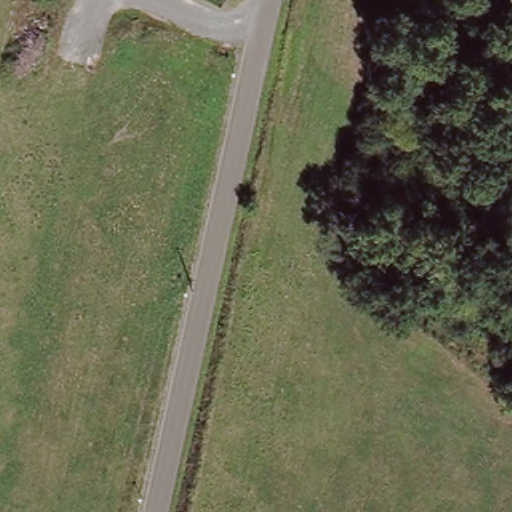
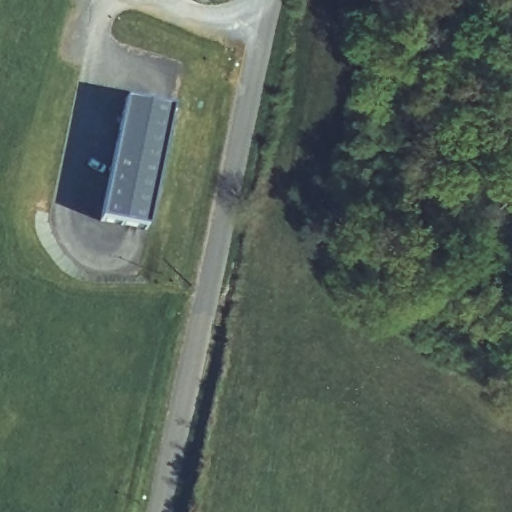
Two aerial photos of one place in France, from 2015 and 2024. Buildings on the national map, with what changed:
new [(174,110),(150,230),(102,221),(126,100),(174,110)]

